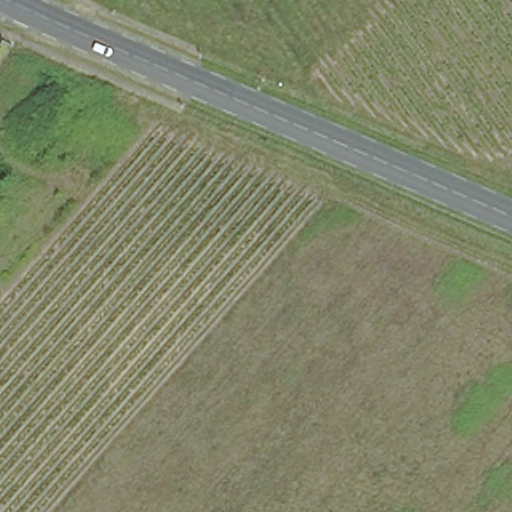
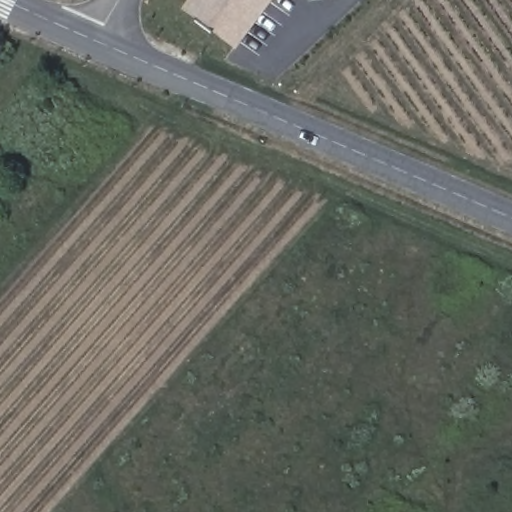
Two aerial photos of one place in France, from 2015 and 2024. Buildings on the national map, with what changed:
new [(188,0),(274,0),(235,50),(181,9),(188,0)]

